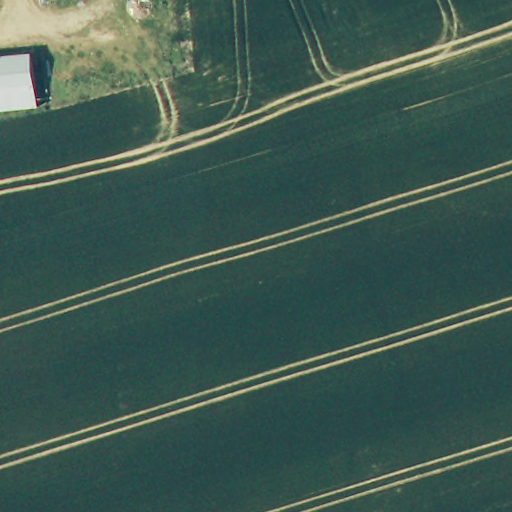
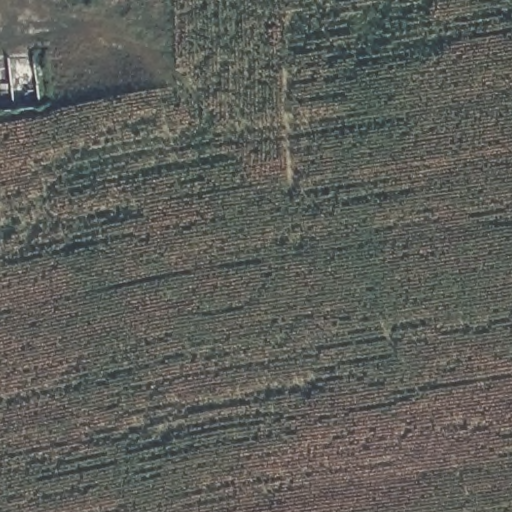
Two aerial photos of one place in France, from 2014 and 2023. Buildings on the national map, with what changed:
unchanged [(40,108),(0,111),(0,58),(34,55),(40,108)]

